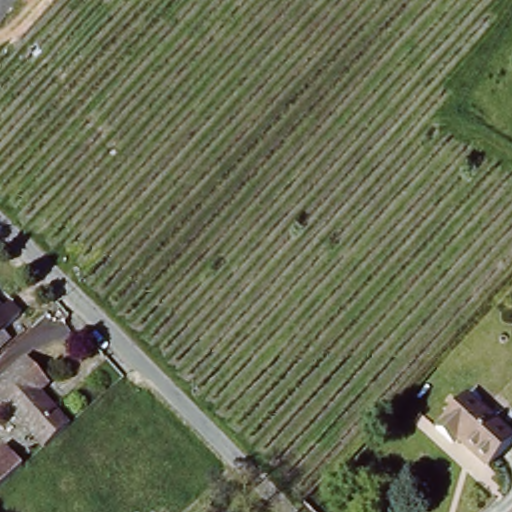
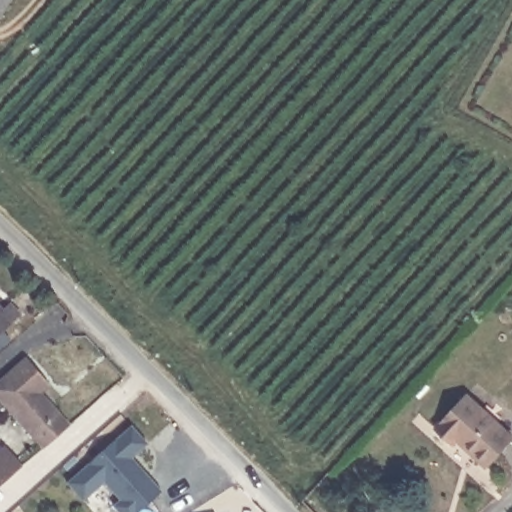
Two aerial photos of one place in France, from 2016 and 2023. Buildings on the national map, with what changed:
unchanged [(0,0),(10,0),(0,14),(0,0)]
unchanged [(22,322),(0,341),(0,318),(11,310),(22,322)]
unchanged [(42,452),(0,402),(0,384),(26,362),(49,387),(37,398),(67,430),(45,450),(42,452)]
unchanged [(480,477),(436,431),(470,396),(512,434),(512,443),(480,477)]
new [(132,423),(147,442),(131,457),(161,491),(137,512),(119,512),(112,505),(119,498),(104,481),(82,500),(66,482),(132,423)]
unchanged [(0,452),(5,447),(21,466),(0,484),(0,452)]

